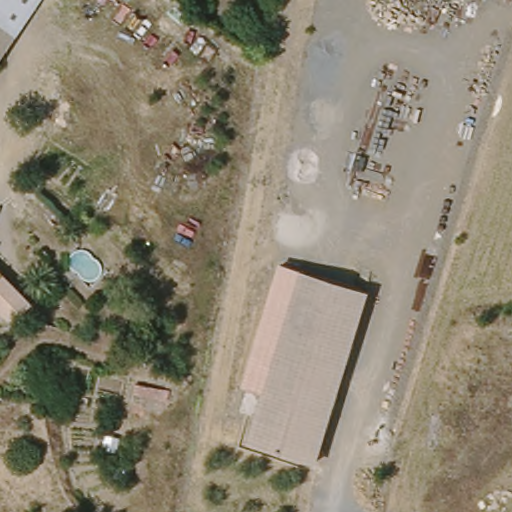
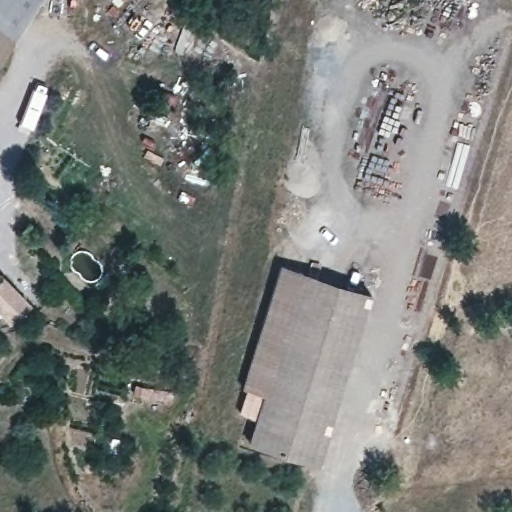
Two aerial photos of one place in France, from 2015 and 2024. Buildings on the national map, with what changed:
unchanged [(7,30),(0,25),(0,0),(30,0),(7,30)]
unchanged [(7,30),(0,41),(0,25),(7,30)]
unchanged [(245,391),(282,265),(304,269),(288,322),(265,395),(245,391)]
unchanged [(370,287),(353,342),(288,322),(304,269),(370,287)]
unchanged [(6,326),(0,319),(0,282),(25,308),(24,308),(6,326)]
unchanged [(250,440),(265,395),(288,322),(353,342),(317,460),(250,440)]

